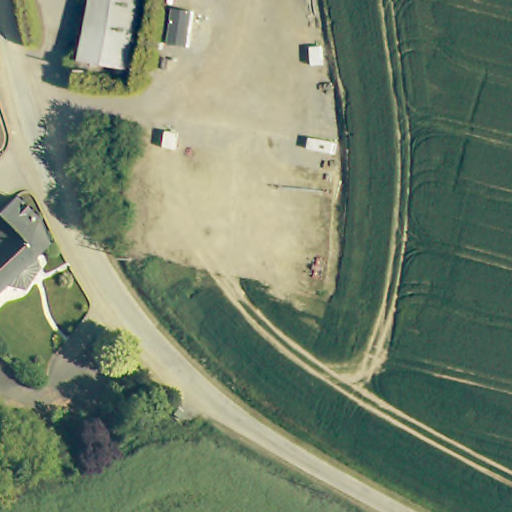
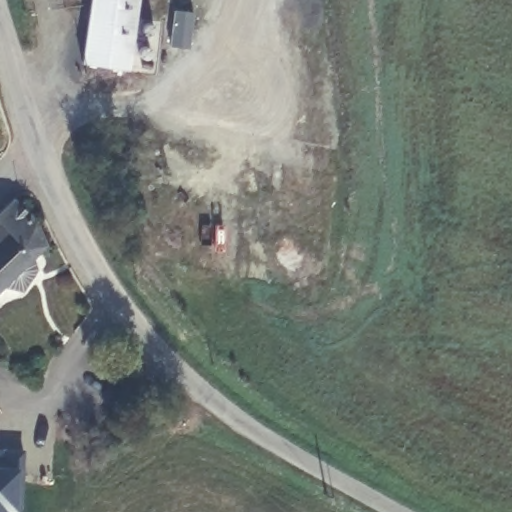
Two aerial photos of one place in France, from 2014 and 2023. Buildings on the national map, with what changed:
unchanged [(85,62),(94,0),(145,0),(136,71),(85,62)]
unchanged [(43,272),(41,274),(29,293),(8,288),(0,296),(0,221),(2,220),(0,218),(0,215),(12,205),(18,200),(40,223),(50,248),(41,257),(39,259),(42,267),(43,272)]
new [(22,512),(0,512),(0,457),(7,458),(8,448),(28,449),(22,512)]

